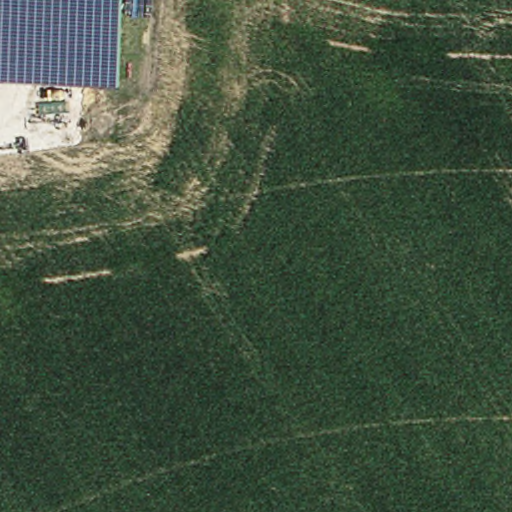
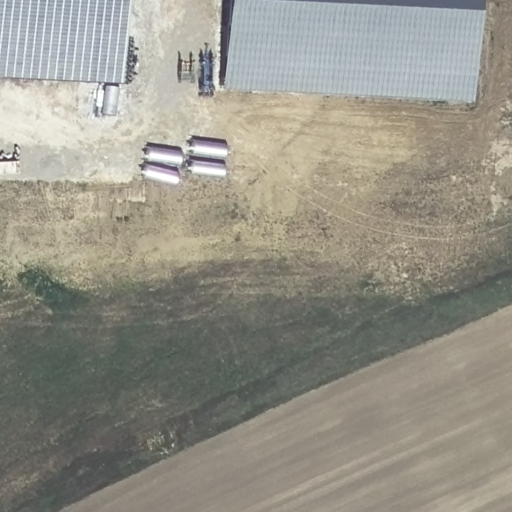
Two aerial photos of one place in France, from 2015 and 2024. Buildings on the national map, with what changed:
unchanged [(0,79),(0,0),(123,0),(117,84),(0,79)]
new [(217,91),(223,0),(476,0),(470,103),(217,91)]

